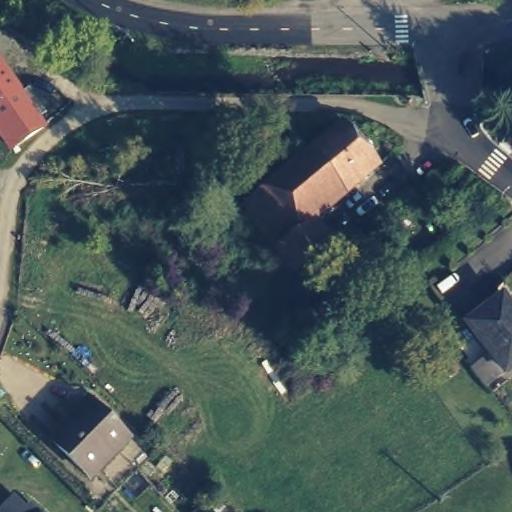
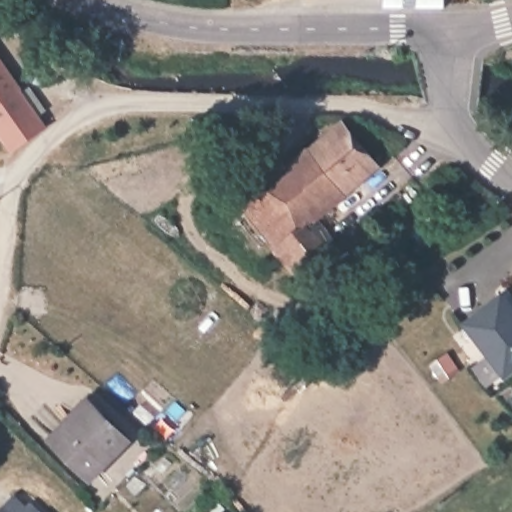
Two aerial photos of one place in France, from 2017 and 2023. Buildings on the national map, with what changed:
unchanged [(38,111),(45,120),(23,137),(14,143),(0,125),(0,63),(18,85),(28,78),(47,103),(38,111)]
unchanged [(304,228),(269,186),(344,117),(381,158),(315,218),(304,228)]
unchanged [(244,208),(269,186),(304,228),(315,218),(331,238),(296,270),(244,208)]
unchanged [(512,305),(512,362),(508,365),(469,318),(500,291),(512,305)]
unchanged [(122,435),(92,476),(49,440),(81,400),(122,435)]
unchanged [(34,512),(0,512),(0,506),(13,494),(34,512)]

